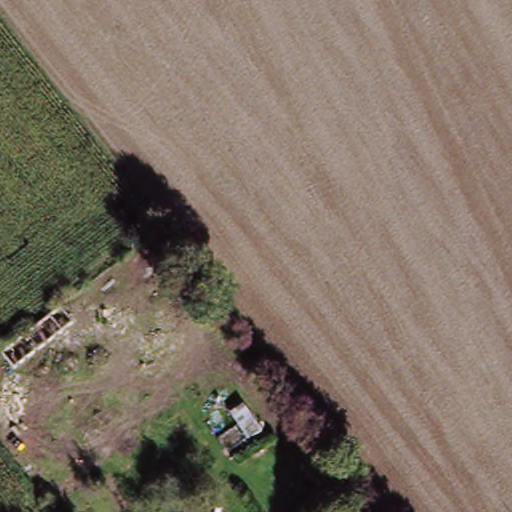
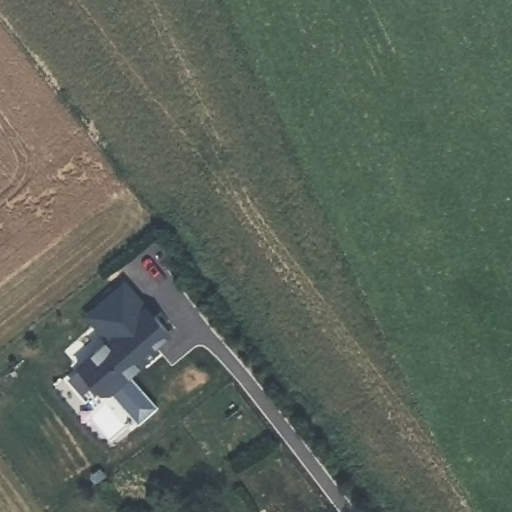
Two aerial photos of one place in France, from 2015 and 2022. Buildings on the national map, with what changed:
new [(115,334),(96,309),(130,277),(172,331),(155,343),(159,347),(112,387),(105,386),(84,358),(115,334)]

